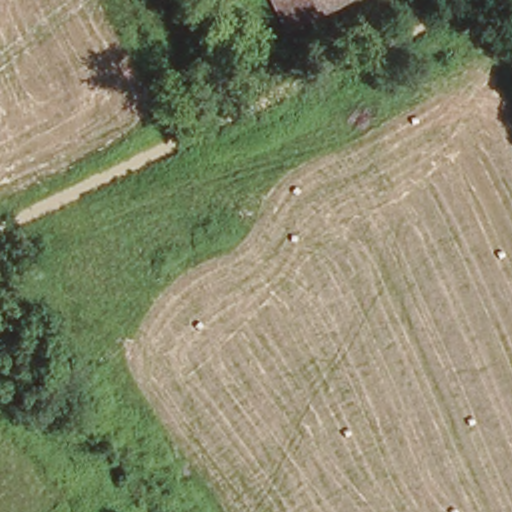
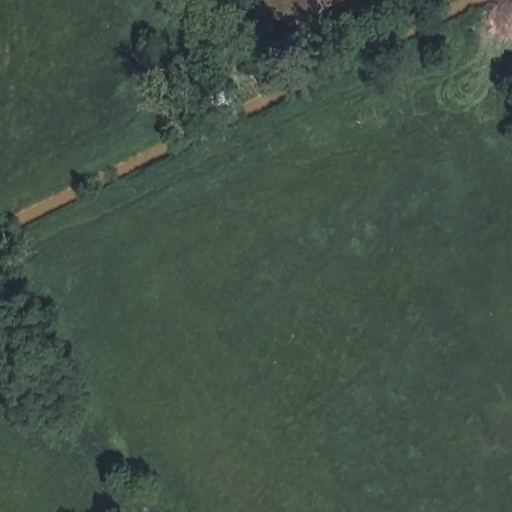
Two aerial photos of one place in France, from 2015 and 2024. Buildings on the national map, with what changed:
unchanged [(260,0),(357,0),(281,39),(260,0)]

